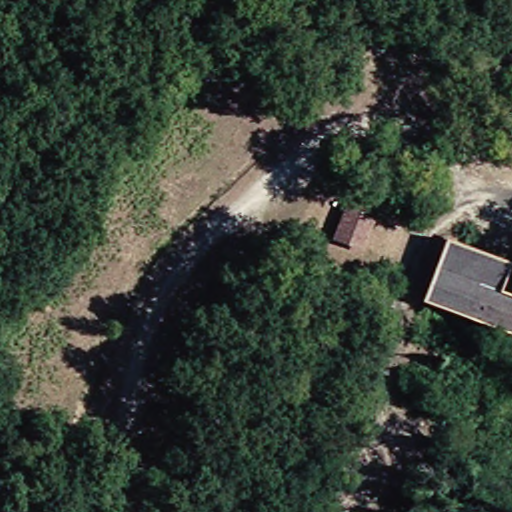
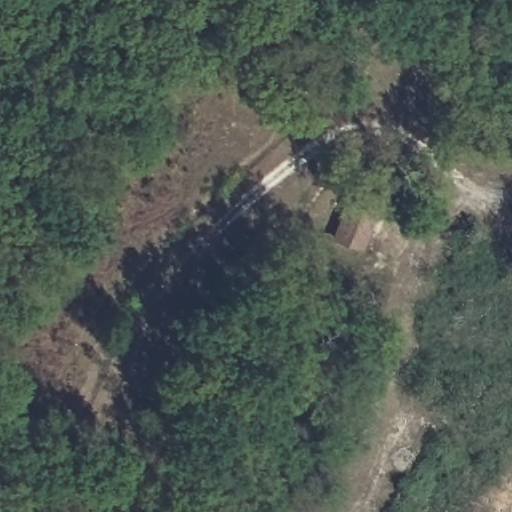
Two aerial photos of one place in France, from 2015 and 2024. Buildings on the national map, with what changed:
unchanged [(371,174),(393,185),(370,235),(346,224),(371,174)]
demolished [(512,251),(512,259),(505,275),(512,279),(512,327),(427,282),(454,222),(512,251)]

